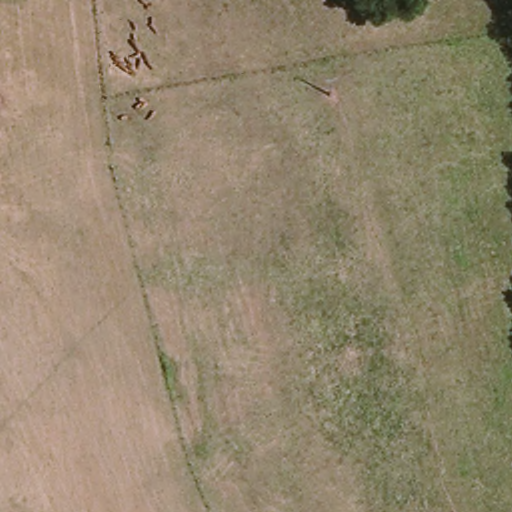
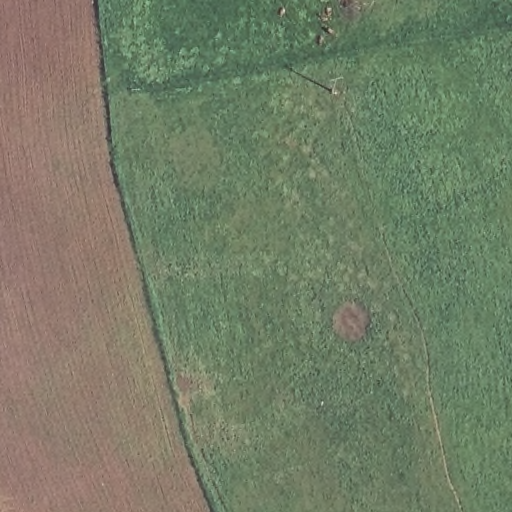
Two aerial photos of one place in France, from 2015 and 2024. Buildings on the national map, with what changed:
[]

